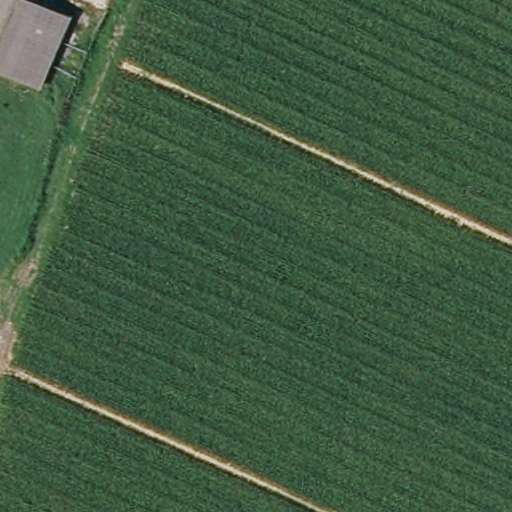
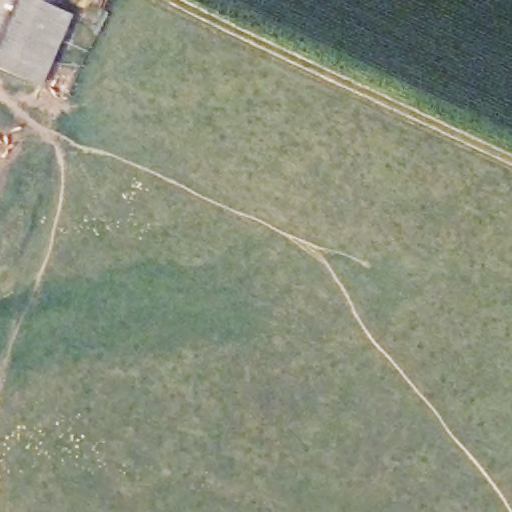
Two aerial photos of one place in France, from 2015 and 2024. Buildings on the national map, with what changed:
unchanged [(0,0),(36,0),(71,15),(42,86),(0,69),(0,0)]

